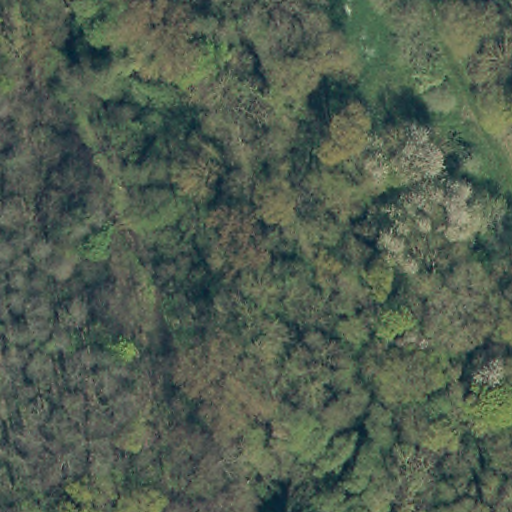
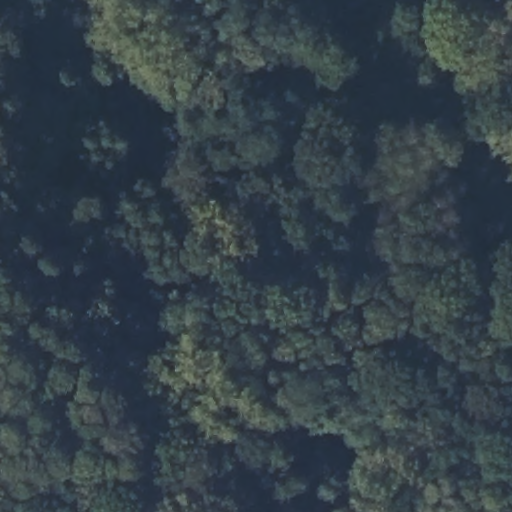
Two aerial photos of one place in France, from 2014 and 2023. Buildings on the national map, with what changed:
[]

